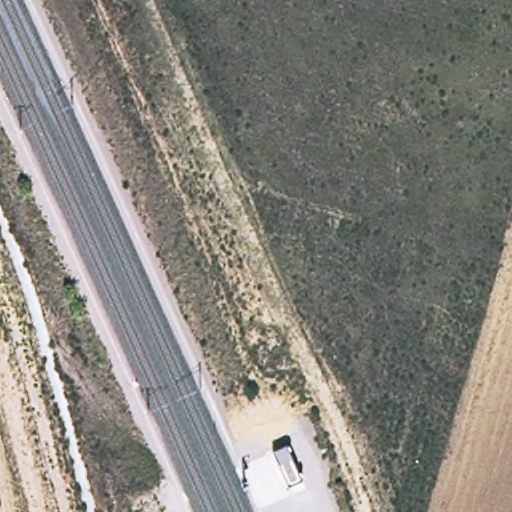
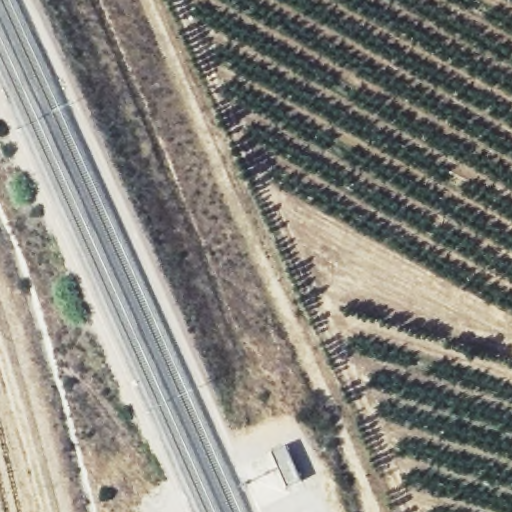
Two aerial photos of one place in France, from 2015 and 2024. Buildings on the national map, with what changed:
unchanged [(299,484),(282,489),(267,455),(284,449),(299,484)]

